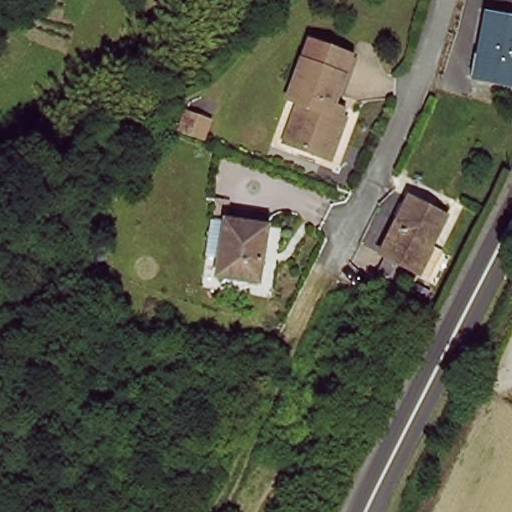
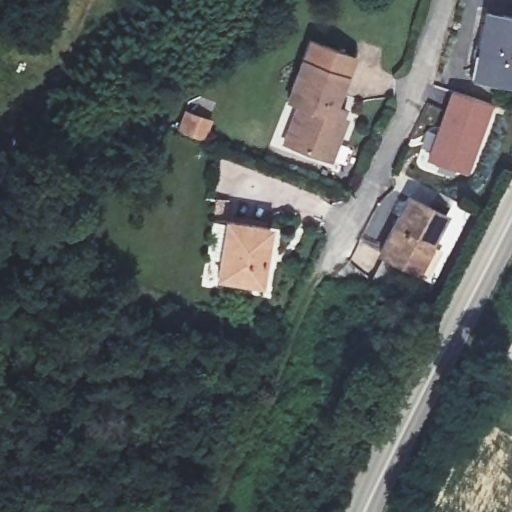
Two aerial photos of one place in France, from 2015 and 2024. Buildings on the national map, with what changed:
unchanged [(490,7),(512,10),(512,88),(474,81),(490,7)]
unchanged [(306,39),(352,53),(346,75),(300,61),(306,39)]
unchanged [(327,161),(295,152),(284,149),(292,126),(299,105),(287,103),(300,61),(346,75),(334,114),(350,119),(342,145),(335,164),(327,161)]
new [(495,105),(472,175),(427,159),(450,90),(495,105)]
unchanged [(420,275),(385,255),(415,198),(452,219),(420,275)]
unchanged [(260,288),(220,280),(230,223),(271,229),(260,288)]

